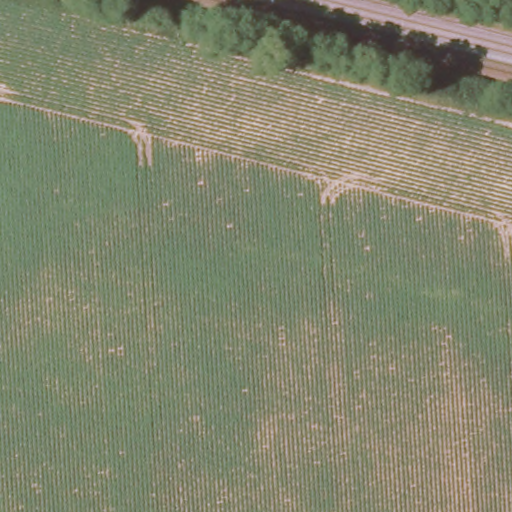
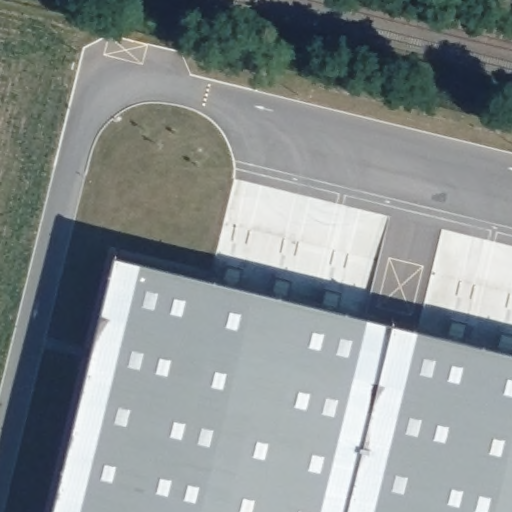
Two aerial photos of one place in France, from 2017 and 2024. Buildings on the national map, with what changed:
new [(512,350),(512,512),(51,512),(115,253),(512,350)]

